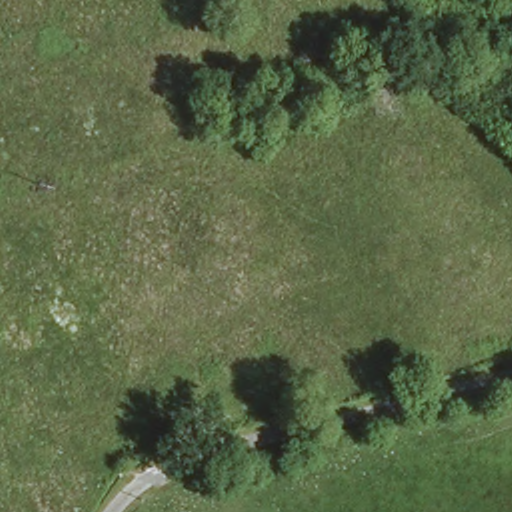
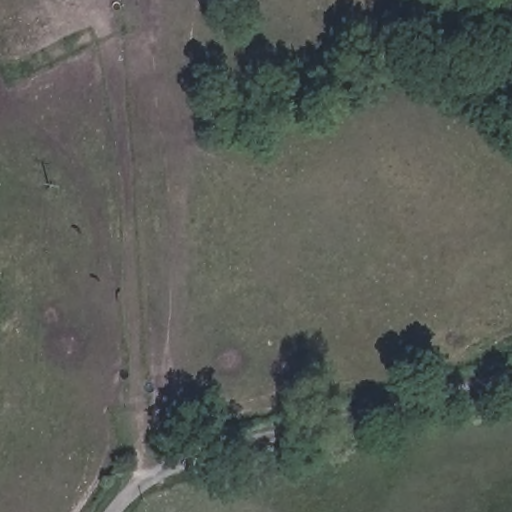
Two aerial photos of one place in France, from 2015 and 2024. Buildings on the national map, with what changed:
[]

